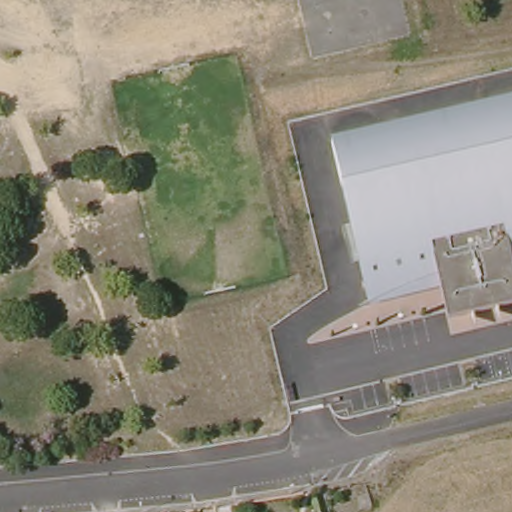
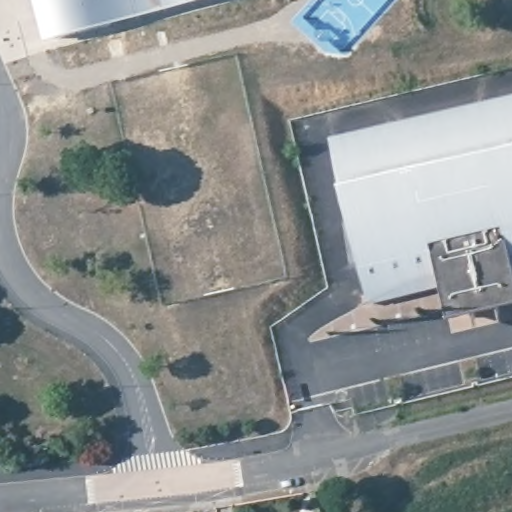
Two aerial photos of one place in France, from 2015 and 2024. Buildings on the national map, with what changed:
new [(45,41),(34,0),(87,0),(50,27),(53,40),(45,41)]
new [(53,40),(50,27),(87,0),(205,0),(53,40)]
unchanged [(330,140),(512,99),(512,304),(445,318),(439,292),(365,308),(330,140)]

